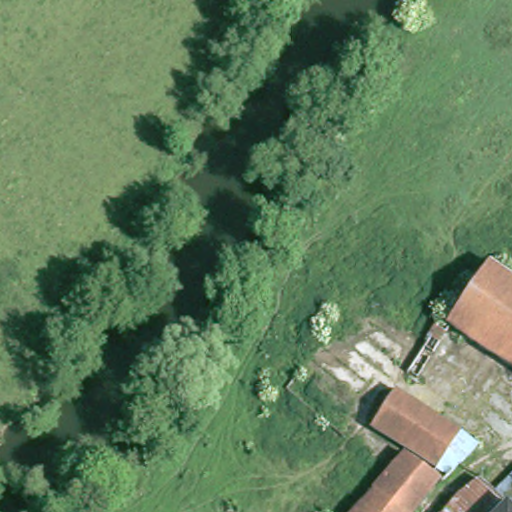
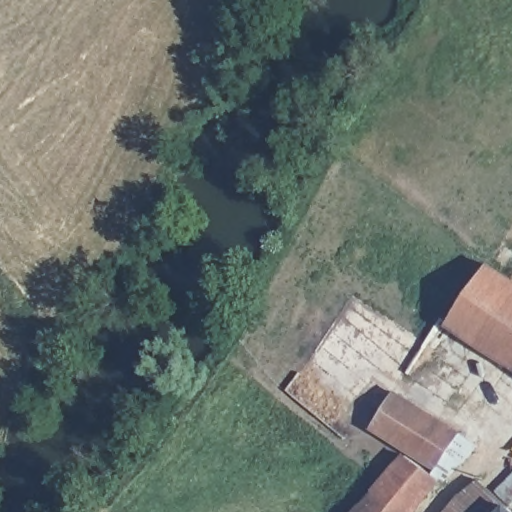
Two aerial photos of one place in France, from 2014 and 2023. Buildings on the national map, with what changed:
unchanged [(456,328),(423,379),(414,373),(447,319),(453,323),(457,317),(457,316),(490,267),(492,264),(503,272),(512,278),(512,367),(456,328)]
unchanged [(436,479),(441,474),(414,459),(389,442),(376,433),(389,413),(399,398),(463,438),(469,453),(446,488),(444,486),(436,479)]
unchanged [(390,483),(403,470),(414,459),(436,479),(444,486),(424,512),(364,512),(390,483)]
unchanged [(462,503),(484,485),(510,512),(454,512),(462,503)]
unchanged [(512,485),(512,509),(500,497),(512,485)]
unchanged [(512,511),(512,512),(511,512),(512,511)]

